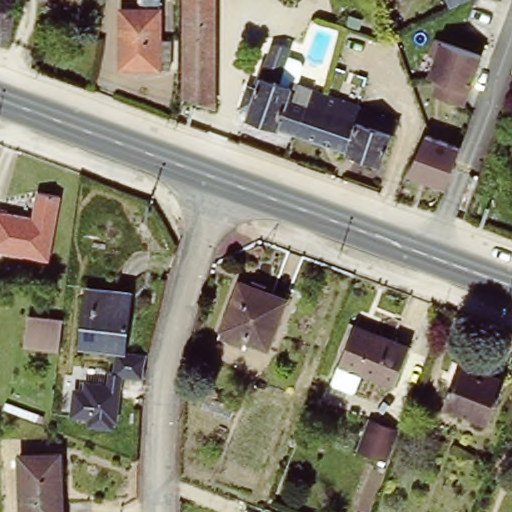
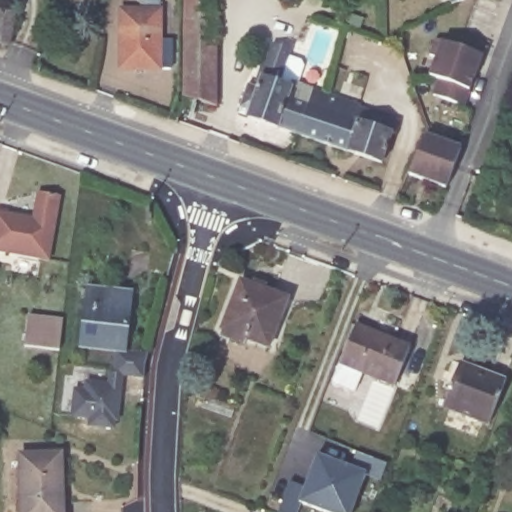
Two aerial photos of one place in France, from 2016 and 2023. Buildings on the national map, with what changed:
unchanged [(0,42),(0,0),(17,0),(10,44),(0,42)]
unchanged [(138,12),(138,0),(153,0),(153,42),(167,42),(167,71),(115,70),(115,13),(138,12)]
unchanged [(189,0),(219,0),(218,109),(188,99),(189,0)]
unchanged [(445,66),(435,63),(448,25),(489,41),(470,92),(464,107),(433,96),(439,81),(445,66)]
unchanged [(248,109),(240,105),(247,82),(256,85),(271,42),(286,43),(285,49),(287,50),(277,80),(290,84),(291,80),(327,93),(322,107),(306,102),(295,132),(246,115),(248,109)]
unchanged [(306,102),(322,107),(327,93),(360,105),(360,107),(398,120),(394,132),(391,131),(380,161),(295,132),(306,102)]
unchanged [(426,132),(461,145),(446,186),(407,172),(426,132)]
unchanged [(37,184),(59,187),(47,254),(0,245),(0,207),(32,212),(37,184)]
unchanged [(264,285),(262,291),(284,300),(265,344),(243,335),(242,340),(217,330),(238,275),(264,285)]
unchanged [(128,345),(85,341),(90,282),(134,286),(128,345)]
unchanged [(62,315),(60,345),(27,343),(30,314),(62,315)]
unchanged [(393,380),(340,360),(355,321),(408,342),(393,380)]
unchanged [(74,385),(81,385),(81,377),(105,380),(105,370),(116,370),(117,351),(146,353),(146,374),(122,373),(120,419),(115,418),(115,425),(87,425),(88,417),(72,415),(74,385)]
unchanged [(490,420),(445,403),(461,361),(505,378),(490,420)]
unchanged [(63,512),(24,512),(21,453),(60,451),(63,512)]
new [(290,480),(305,485),(317,454),(349,466),(355,451),(387,463),(380,481),(366,472),(351,512),(325,512),(299,502),(297,512),(285,512),(280,510),(290,480)]
unchanged [(280,510),(285,512),(279,512),(280,510)]

